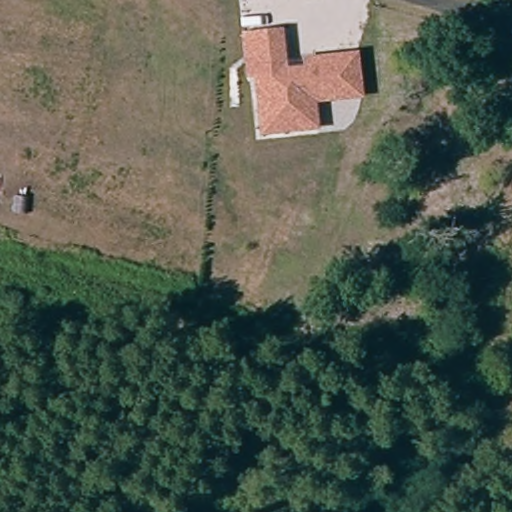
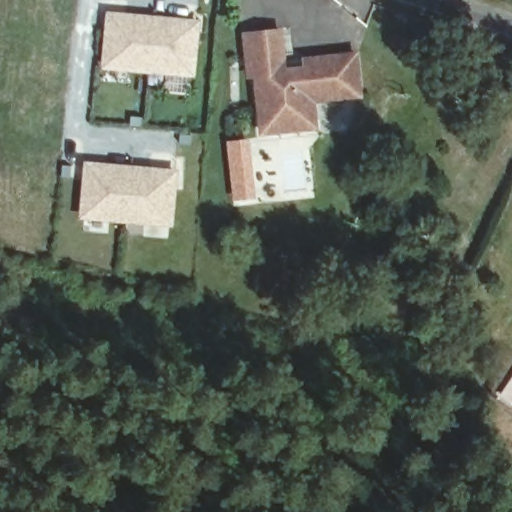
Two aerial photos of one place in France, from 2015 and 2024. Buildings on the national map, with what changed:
new [(201,19),(196,76),(101,69),(106,10),(201,19)]
unchanged [(321,129),(259,136),(253,79),(246,79),(241,31),(283,26),(287,61),(358,50),(364,98),(317,103),(321,129)]
new [(234,199),(231,159),(230,144),(247,143),(248,158),(251,198),(234,199)]
new [(178,169),(173,227),(78,219),(83,160),(178,169)]

